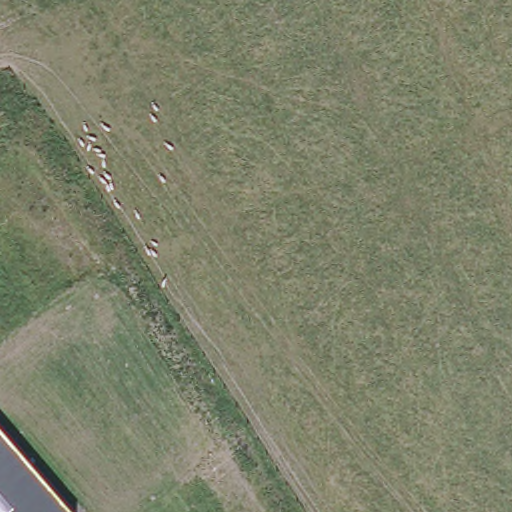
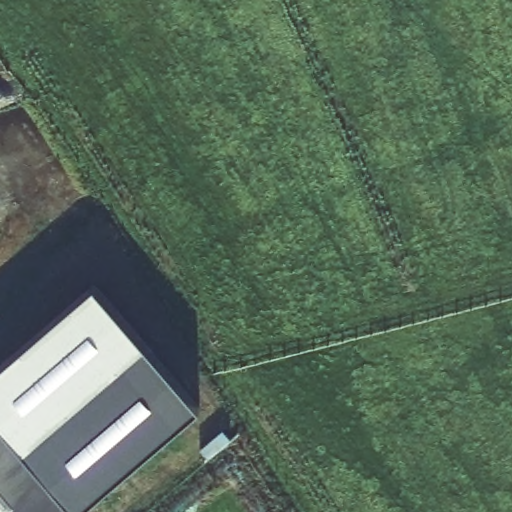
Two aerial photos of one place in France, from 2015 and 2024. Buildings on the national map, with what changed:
new [(93,285),(200,408),(79,512),(74,512),(0,425),(0,366),(93,285)]
unchanged [(0,512),(0,425),(74,512),(0,512)]

